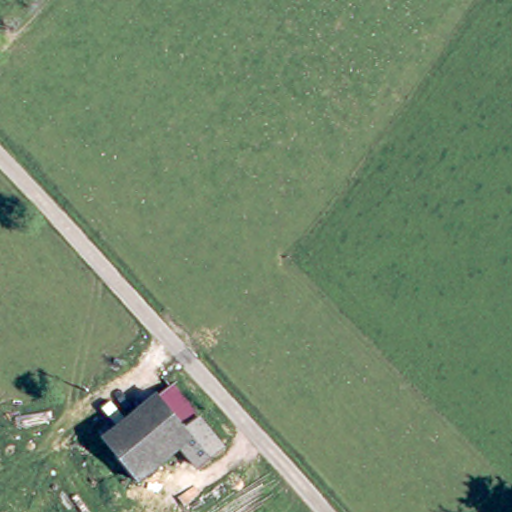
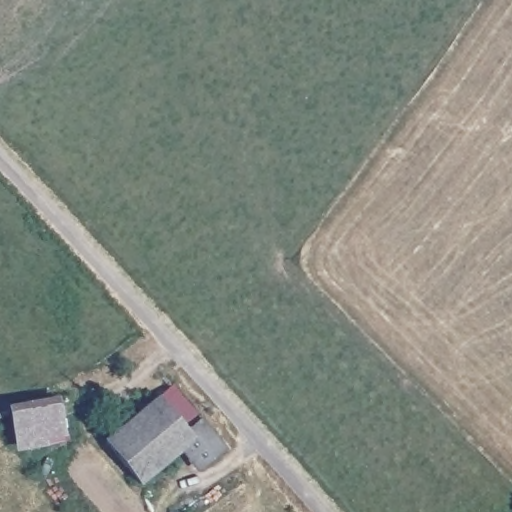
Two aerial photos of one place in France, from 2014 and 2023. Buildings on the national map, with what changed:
new [(60,398),(66,436),(46,439),(47,447),(15,453),(8,408),(60,398)]
unchanged [(207,460),(196,446),(144,487),(110,445),(162,402),(191,436),(202,427),(221,447),(207,460)]

